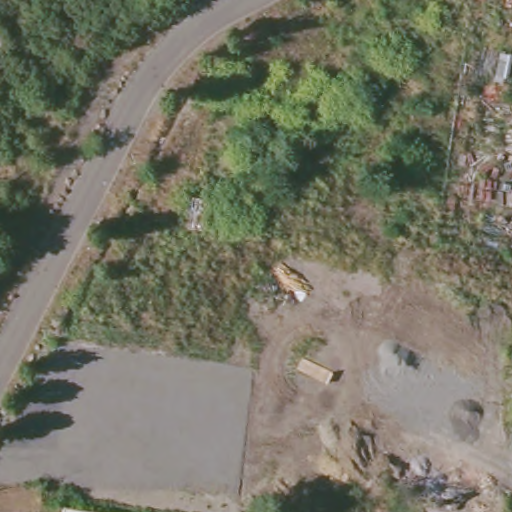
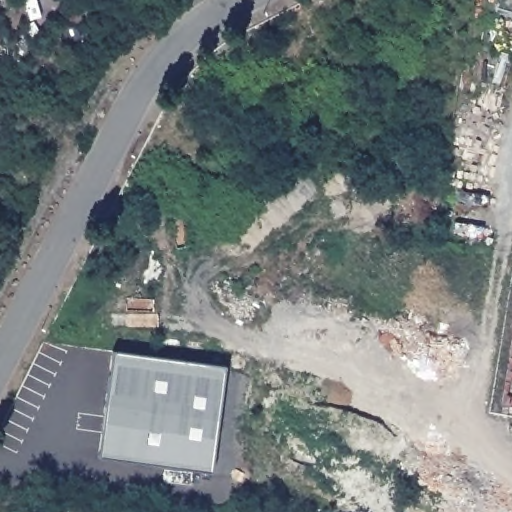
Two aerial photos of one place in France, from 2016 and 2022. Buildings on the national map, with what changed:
new [(115,352),(225,367),(210,471),(100,456),(115,352)]

